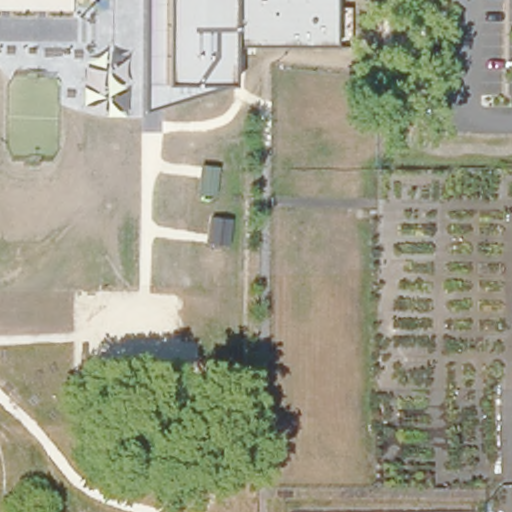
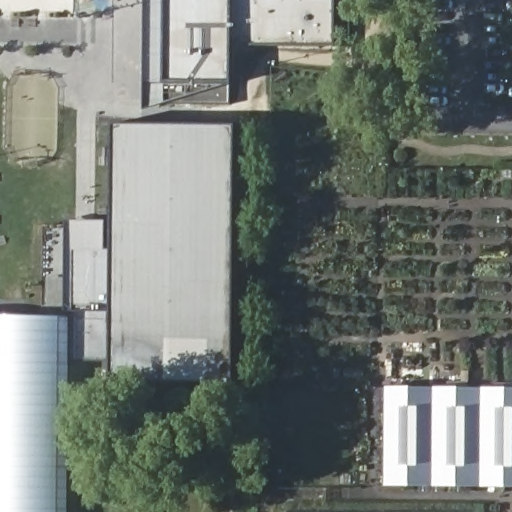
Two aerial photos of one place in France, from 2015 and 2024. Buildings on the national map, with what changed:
unchanged [(237,44),(232,45),(231,81),(232,84),(143,108),(147,0),(336,0),(335,43),(237,44)]
new [(233,380),(110,381),(111,362),(71,361),(71,310),(64,311),(64,220),(105,220),(104,248),(111,248),(114,125),(235,125),(233,380)]
new [(68,512),(0,512),(0,316),(69,316),(68,512)]
new [(512,386),(512,487),(385,486),(386,386),(512,386)]

